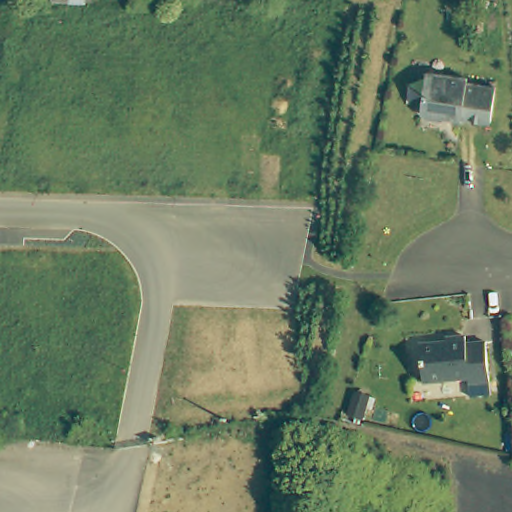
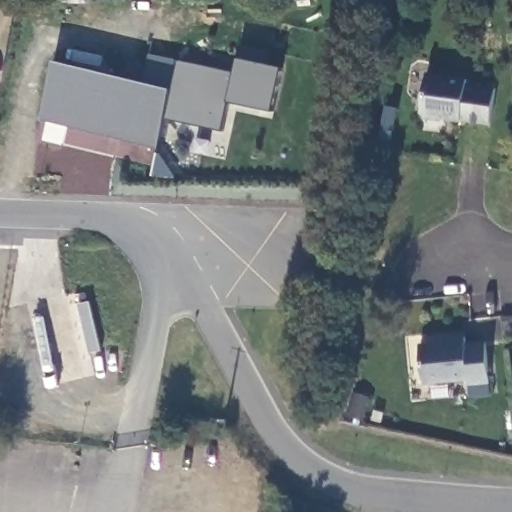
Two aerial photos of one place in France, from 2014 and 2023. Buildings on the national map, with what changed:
demolished [(131,0),(138,0),(132,1),(131,0)]
new [(271,63),(283,66),(273,111),(229,102),(223,129),(166,118),(160,146),(42,119),(55,60),(174,88),(179,60),(237,71),(242,46),(272,51),(271,63)]
unchanged [(495,121),(453,116),(447,120),(430,118),(427,112),(432,75),(472,80),(472,85),(499,89),(495,121)]
unchanged [(467,346),(487,345),(490,384),(469,386),(469,382),(425,387),(421,347),(447,344),(447,341),(466,340),(467,346)]

